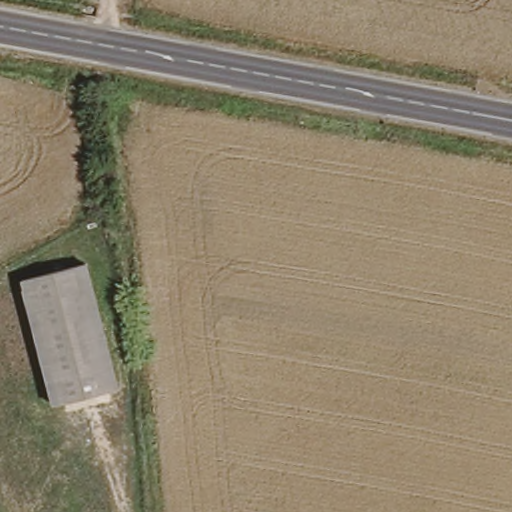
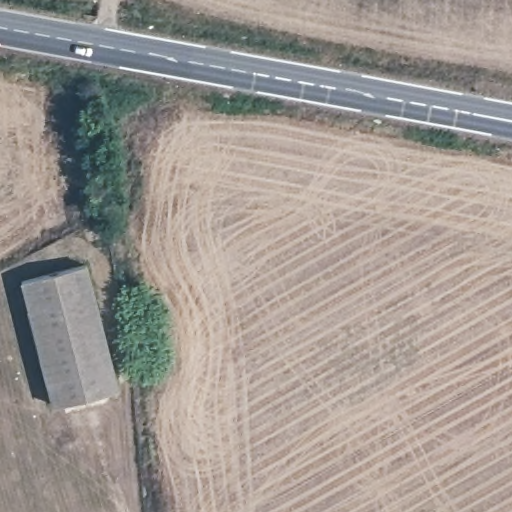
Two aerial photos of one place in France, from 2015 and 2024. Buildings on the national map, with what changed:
unchanged [(86,260),(116,383),(53,398),(23,277),(86,260)]

